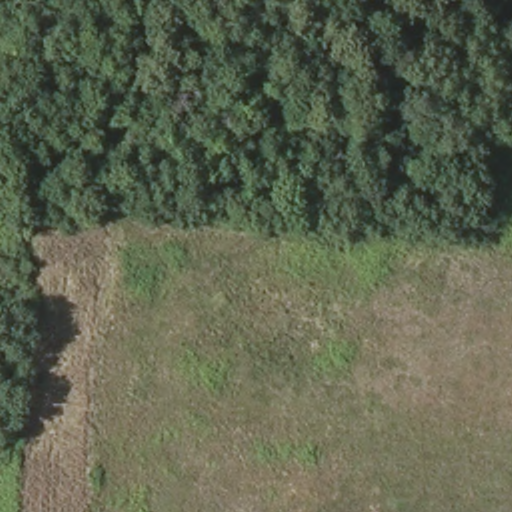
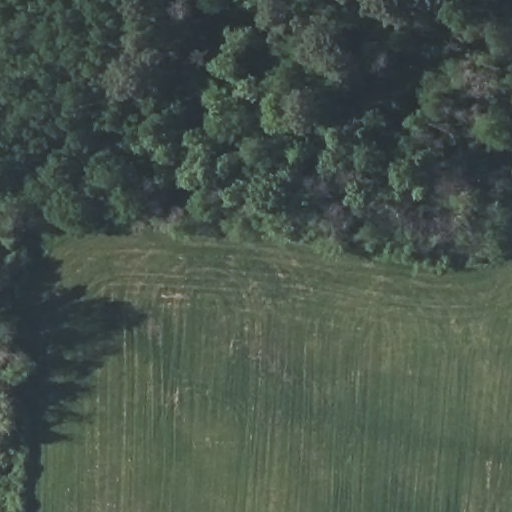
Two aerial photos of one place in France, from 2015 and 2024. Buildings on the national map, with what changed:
[]

